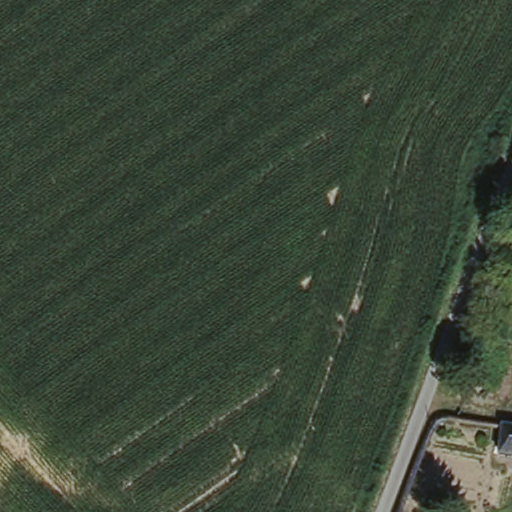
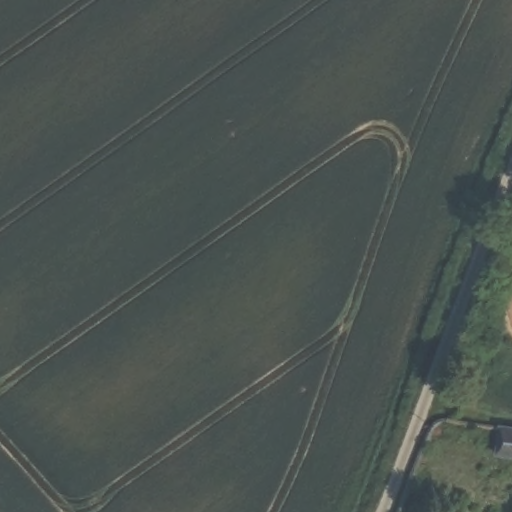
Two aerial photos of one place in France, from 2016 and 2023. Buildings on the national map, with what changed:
unchanged [(502,426),(512,428),(512,456),(497,454),(502,426)]

